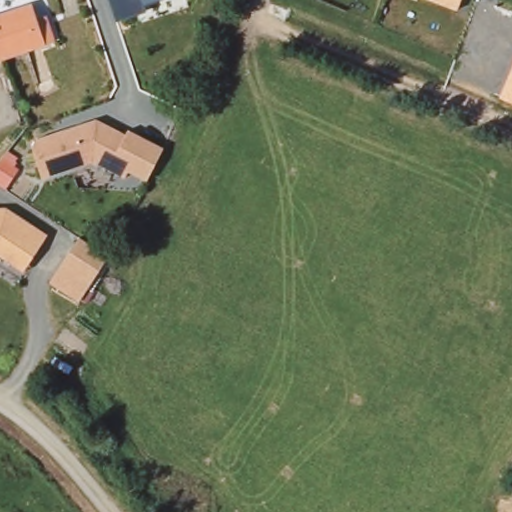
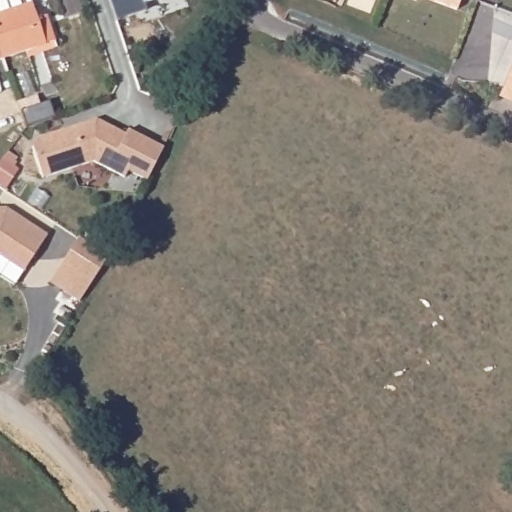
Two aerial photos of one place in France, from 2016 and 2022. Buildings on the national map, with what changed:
unchanged [(109,0),(151,0),(146,2),(145,12),(115,20),(109,0)]
unchanged [(457,14),(419,0),(463,0),(457,14)]
unchanged [(47,16),(55,41),(46,44),(2,58),(0,51),(0,14),(32,3),(37,19),(47,16)]
unchanged [(0,59),(0,51),(2,58),(0,59)]
unchanged [(499,98),(512,69),(512,103),(499,98)]
unchanged [(32,142),(96,119),(124,135),(127,128),(165,147),(147,178),(129,169),(123,178),(94,162),(42,176),(32,142)]
unchanged [(49,232),(24,269),(0,256),(0,206),(9,205),(49,232)]
unchanged [(79,237),(109,255),(79,300),(49,281),(79,237)]

